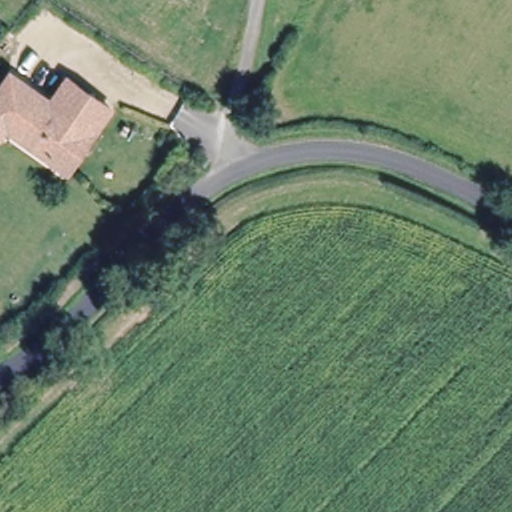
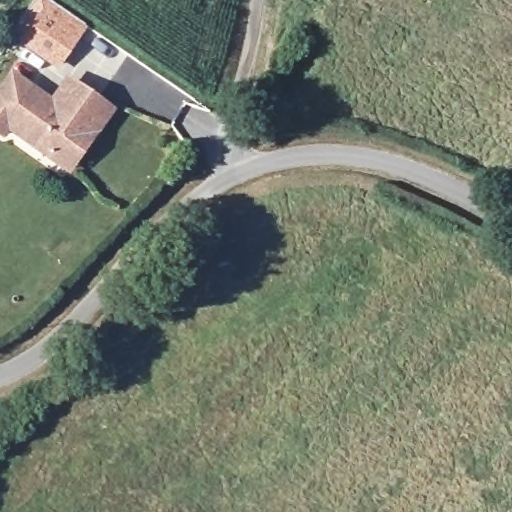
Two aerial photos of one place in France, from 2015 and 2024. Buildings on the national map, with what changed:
new [(18,42),(22,36),(15,30),(37,0),(43,0),(86,29),(58,70),(18,42)]
unchanged [(8,128),(2,137),(0,135),(0,94),(12,77),(53,105),(69,82),(90,96),(111,111),(82,154),(70,171),(49,157),(8,128)]

